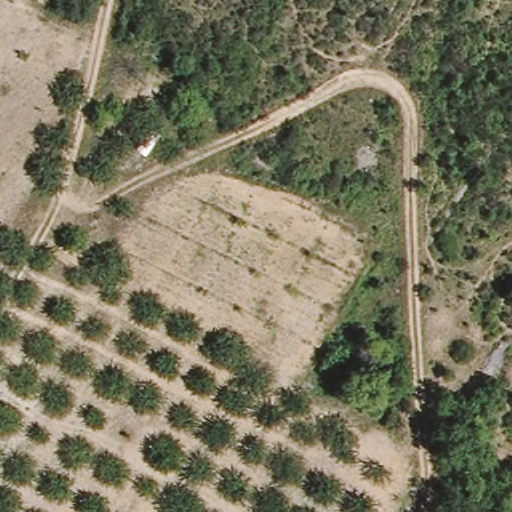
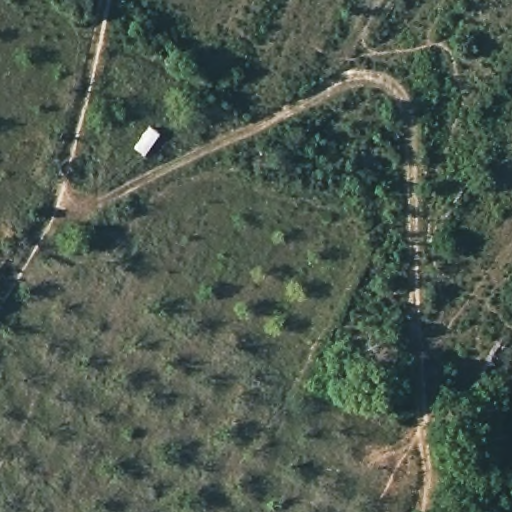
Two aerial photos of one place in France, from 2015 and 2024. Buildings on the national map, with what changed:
unchanged [(128,149),(144,125),(158,135),(143,161),(128,149)]

